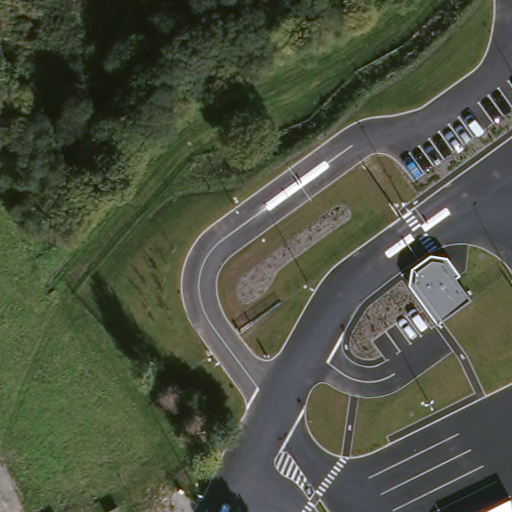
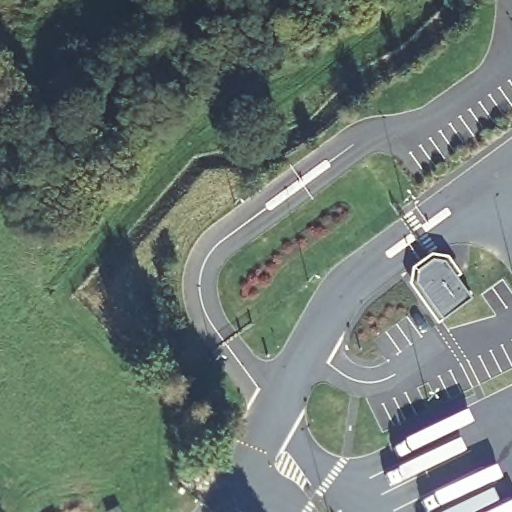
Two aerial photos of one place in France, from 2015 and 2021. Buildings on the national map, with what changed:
unchanged [(410,287),(412,269),(431,257),(448,259),(460,276),(456,281),(471,302),(437,323),(410,287)]

